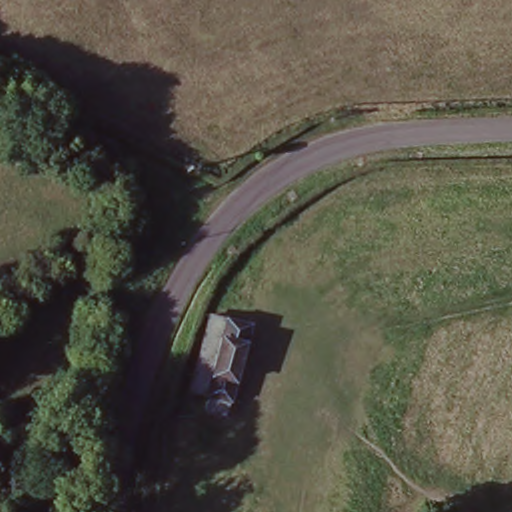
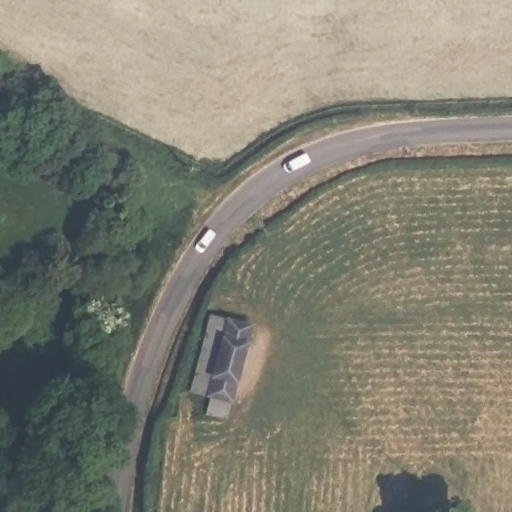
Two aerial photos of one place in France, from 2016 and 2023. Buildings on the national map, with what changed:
unchanged [(195,382),(205,325),(246,332),(229,424),(212,422),(212,404),(208,403),(191,403),(195,382)]

